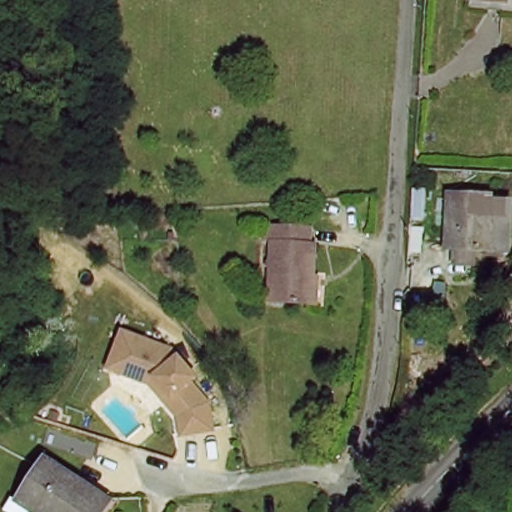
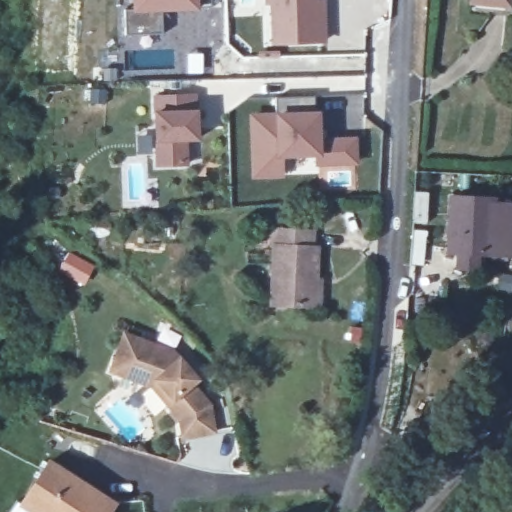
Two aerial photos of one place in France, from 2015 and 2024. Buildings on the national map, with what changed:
new [(132,0),(199,0),(199,10),(162,11),(163,35),(125,36),(125,10),(132,10),(132,0)]
new [(272,45),(270,5),(264,6),(264,0),(326,0),(327,43),(272,45)]
unchanged [(472,0),(511,0),(510,6),(471,2),(472,0)]
new [(199,94),(199,109),(199,142),(188,142),(190,166),(155,167),(154,142),(153,112),(153,95),(199,94)]
new [(274,114),(274,98),(322,97),(320,111),(321,135),(357,136),(358,165),(315,167),(315,157),(285,158),(285,180),(251,180),(249,114),(274,114)]
unchanged [(457,251),(446,250),(454,189),(512,198),(512,257),(491,254),(490,256),(483,255),(481,272),(455,266),(457,251)]
unchanged [(328,310),(319,310),(277,309),(277,231),(313,231),(314,245),(318,245),(319,281),(327,281),(328,310)]
unchanged [(180,362),(201,386),(196,390),(212,409),(216,433),(189,438),(186,421),(174,408),(179,403),(165,387),(159,391),(123,378),(135,345),(180,362)]
unchanged [(32,495),(51,460),(118,495),(109,512),(40,512),(26,505),(32,495)]

